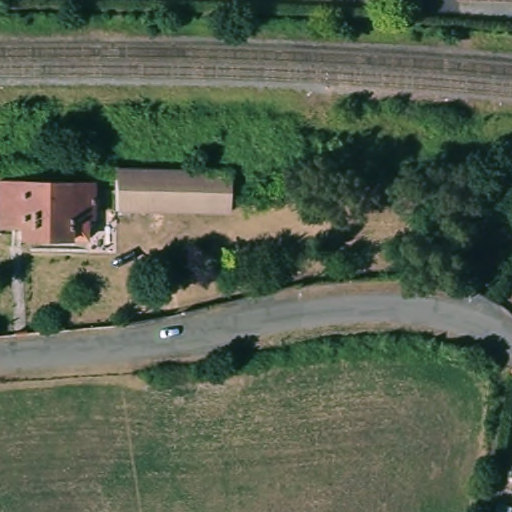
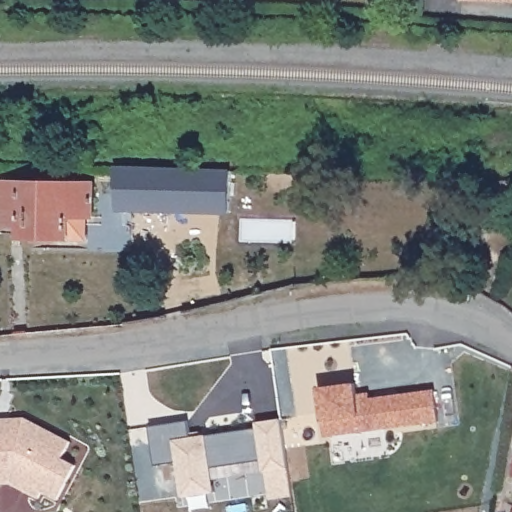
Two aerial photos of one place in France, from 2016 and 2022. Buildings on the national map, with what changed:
unchanged [(477,0),(512,0),(512,1),(477,0)]
unchanged [(175,166),(210,167),(228,168),(228,177),(220,177),(219,209),(108,207),(106,163),(175,166)]
unchanged [(19,178),(63,180),(63,178),(89,178),(89,214),(83,214),(82,235),(14,234),(14,222),(0,222),(0,177),(19,177),(19,178)]
new [(322,421),(318,388),(355,382),(356,394),(368,391),(369,396),(433,388),(437,421),(324,437),(322,421)]
new [(256,421),(279,419),(287,469),(264,472),(261,460),(212,467),(214,492),(180,497),(175,461),(155,464),(149,427),(187,421),(189,437),(205,434),(206,436),(257,428),(256,421)]
new [(76,451),(68,467),(80,475),(64,510),(48,501),(44,508),(17,493),(6,492),(0,497),(0,428),(30,427),(76,451)]

